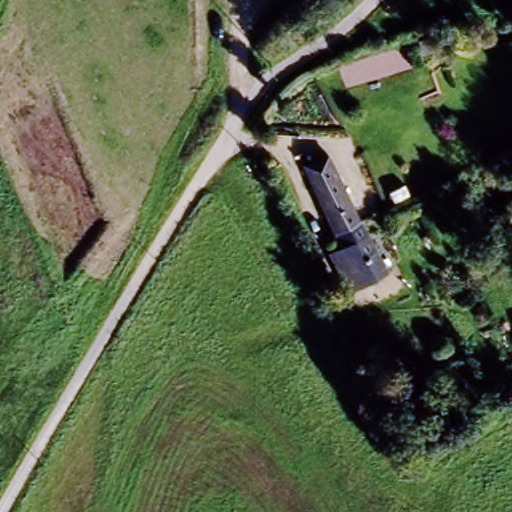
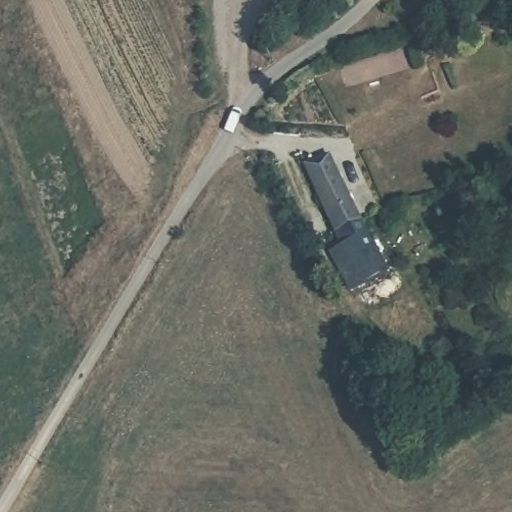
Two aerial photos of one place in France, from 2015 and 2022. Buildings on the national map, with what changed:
unchanged [(330,150),(359,218),(334,229),(305,161),(330,150)]
unchanged [(359,218),(383,272),(346,288),(334,260),(344,255),(334,229),(359,218)]

